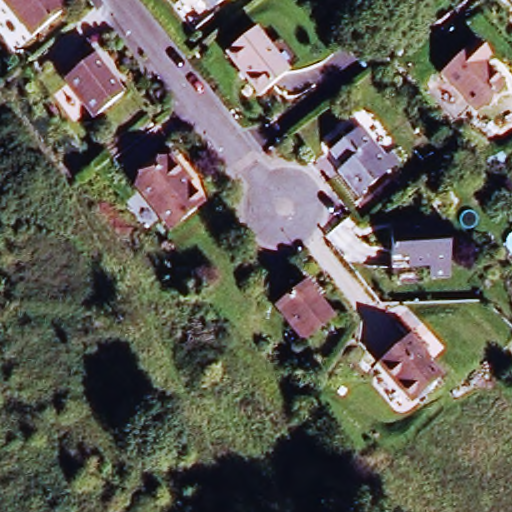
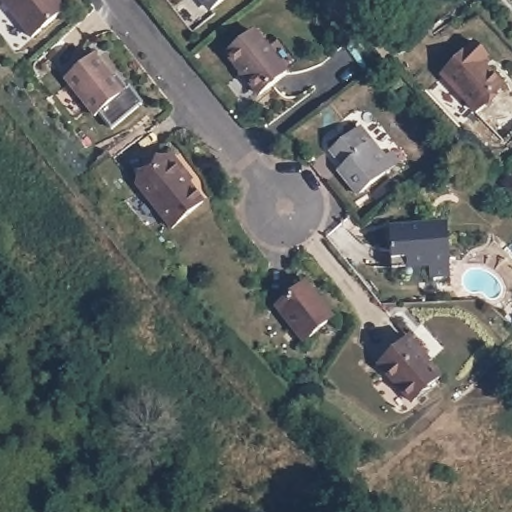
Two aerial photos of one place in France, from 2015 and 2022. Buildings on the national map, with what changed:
unchanged [(60,15),(27,42),(0,8),(0,0),(48,0),(60,15)]
unchanged [(207,15),(195,0),(226,0),(207,15)]
unchanged [(221,60),(248,38),(262,55),(275,46),(293,69),(281,79),(254,101),(221,60)]
unchanged [(473,45),(487,59),(481,64),(502,86),(475,112),(440,76),(473,45)]
unchanged [(123,94),(95,116),(65,78),(93,56),(123,94)]
unchanged [(333,177),(338,173),(326,157),(364,127),(396,166),(352,200),(333,177)]
unchanged [(167,228),(132,185),(163,160),(167,157),(187,181),(183,184),(198,203),(167,228)]
unchanged [(442,221),(445,271),(425,272),(425,262),(387,264),(385,224),(442,221)]
unchanged [(293,352),(266,317),(295,294),(322,328),(293,352)]
unchanged [(417,359),(415,361),(435,383),(406,408),(373,370),(403,343),(417,359)]

